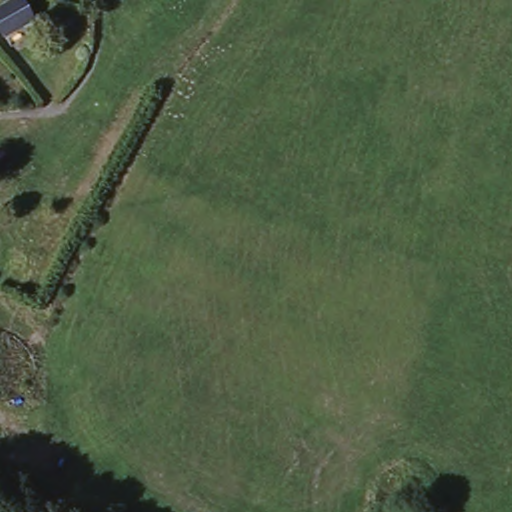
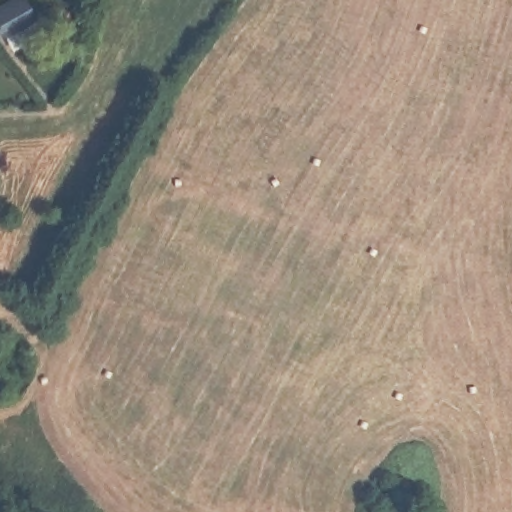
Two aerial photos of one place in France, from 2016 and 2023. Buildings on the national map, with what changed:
unchanged [(26,0),(38,22),(3,43),(0,38),(0,2),(4,0),(26,0)]

